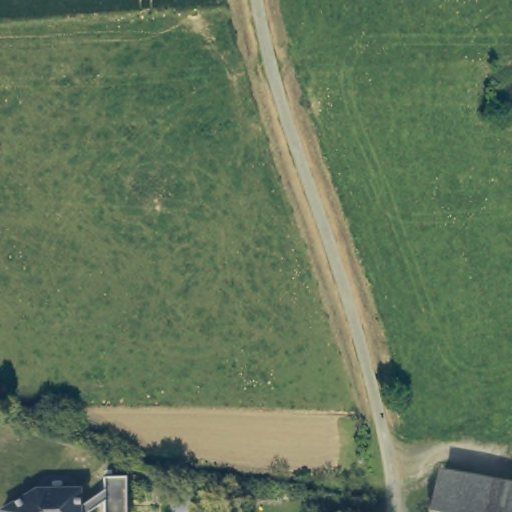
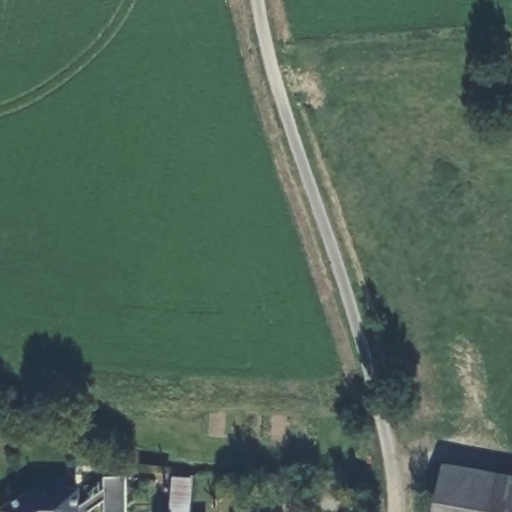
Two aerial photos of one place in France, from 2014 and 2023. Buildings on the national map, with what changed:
unchanged [(444,470),(512,479),(512,512),(436,512),(444,470)]
unchanged [(172,478),(189,480),(186,512),(169,512),(172,478)]
unchanged [(80,491),(79,510),(103,492),(104,479),(126,479),(126,512),(104,512),(104,503),(90,512),(1,512),(33,491),(80,491)]

